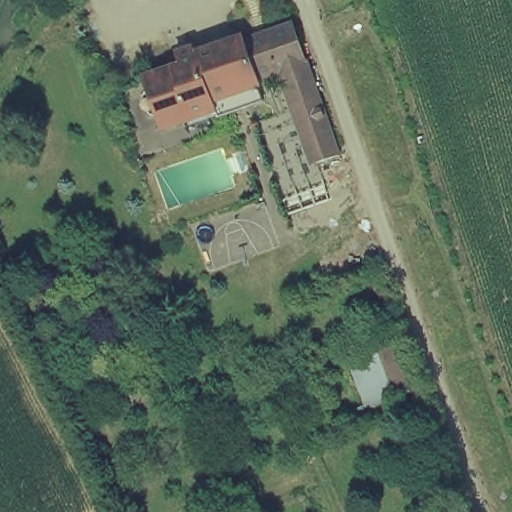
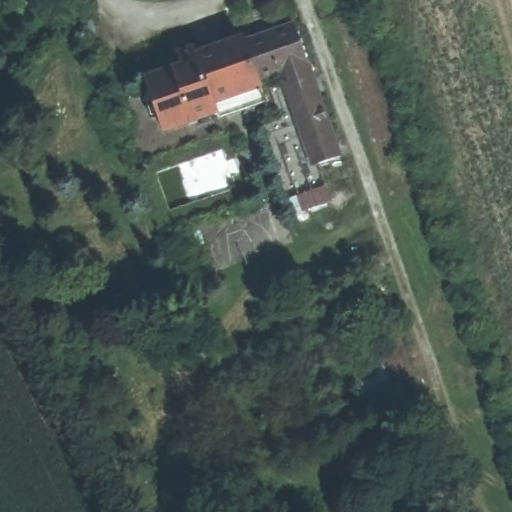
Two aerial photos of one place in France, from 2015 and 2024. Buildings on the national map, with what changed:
unchanged [(178,61),(172,48),(199,38),(202,44),(242,33),(245,39),(295,19),(346,149),(312,164),(277,75),(260,79),(265,92),(216,105),(220,115),(163,135),(140,75),(178,61)]
unchanged [(400,332),(420,389),(367,410),(347,354),(400,332)]

